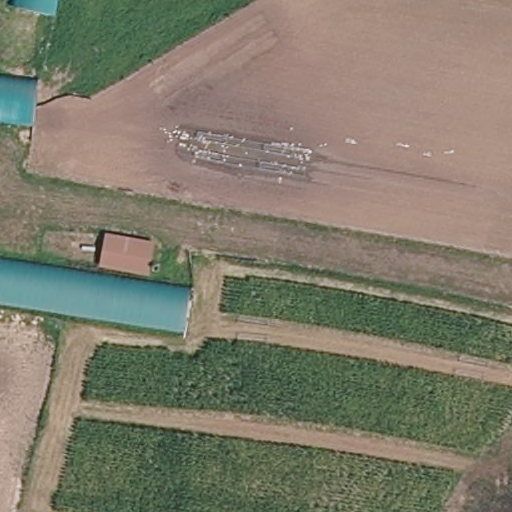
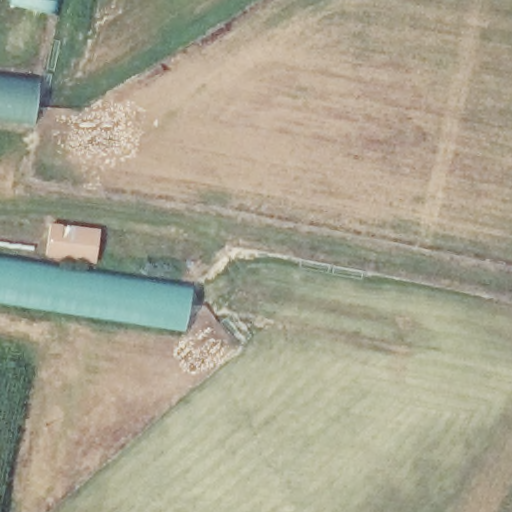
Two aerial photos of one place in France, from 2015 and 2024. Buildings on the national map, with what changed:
unchanged [(6,0),(57,0),(54,13),(5,0),(6,0)]
unchanged [(34,125),(0,121),(0,77),(39,81),(34,125)]
new [(50,224),(99,229),(96,263),(47,257),(48,240),(50,224)]
unchanged [(194,292),(187,337),(155,332),(0,307),(0,260),(151,284),(194,292)]

